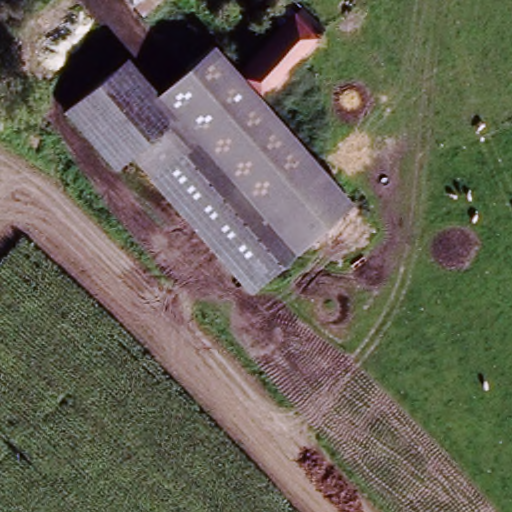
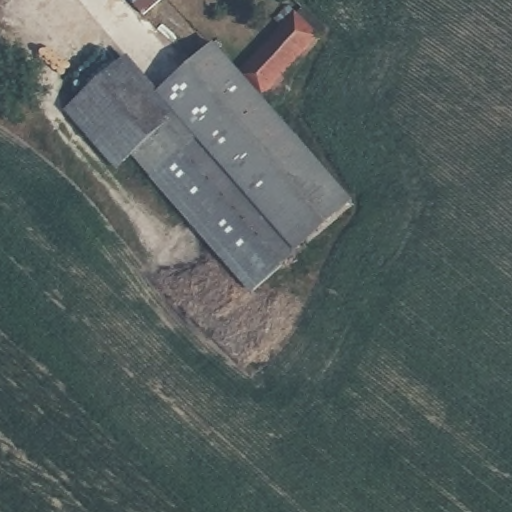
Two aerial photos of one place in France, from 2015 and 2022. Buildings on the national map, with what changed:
unchanged [(140,18),(124,0),(161,0),(140,18)]
unchanged [(301,7),(327,29),(290,69),(300,78),(272,108),(239,75),(301,7)]
unchanged [(166,87),(214,48),(239,75),(351,208),(302,246),(166,87)]
unchanged [(85,90),(112,68),(142,105),(160,126),(135,146),(85,90)]
unchanged [(166,87),(302,246),(278,266),(160,126),(142,105),(166,87)]
unchanged [(247,293),(127,151),(115,161),(67,106),(85,90),(135,146),(160,126),(278,266),(247,293)]

